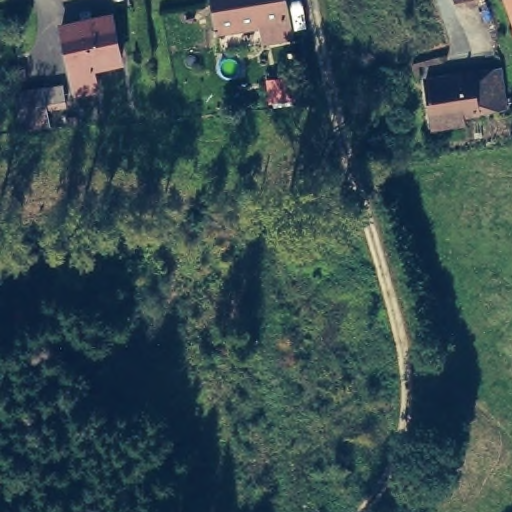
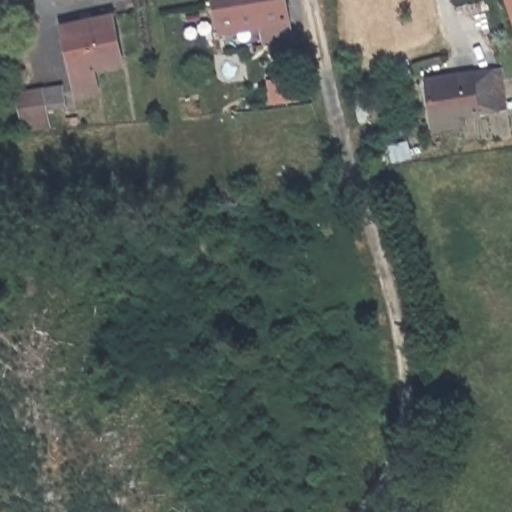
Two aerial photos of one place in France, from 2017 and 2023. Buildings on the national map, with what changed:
unchanged [(277,35),(272,14),(223,24),(218,0),(284,0),(291,32),(277,35)]
unchanged [(512,0),(512,18),(507,0),(512,0)]
unchanged [(115,60),(90,66),(95,91),(73,96),(60,30),(105,18),(115,60)]
unchanged [(433,126),(431,117),(423,78),(487,69),(497,67),(505,106),(495,108),(459,113),(462,122),(433,126)]
unchanged [(18,89),(60,81),(62,101),(43,104),(46,122),(24,125),(18,89)]

